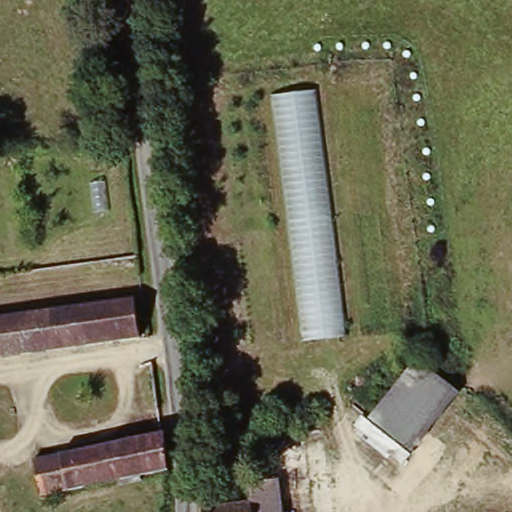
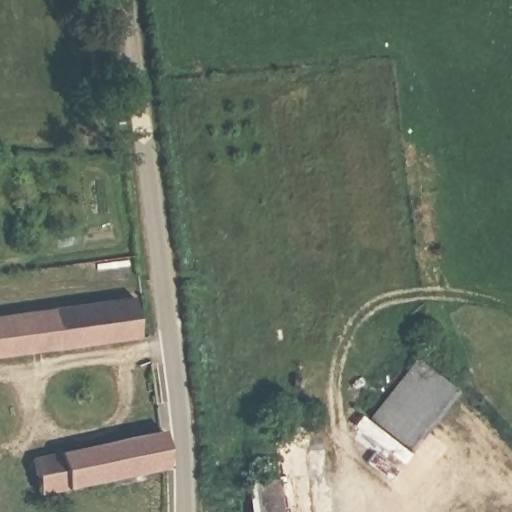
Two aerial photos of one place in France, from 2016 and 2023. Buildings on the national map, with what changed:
demolished [(340,335),(301,339),(270,95),(316,90),(340,335)]
unchanged [(137,299),(141,339),(0,359),(0,317),(137,299)]
unchanged [(415,449),(370,420),(413,360),(457,396),(415,449)]
unchanged [(156,435),(161,435),(165,472),(157,473),(29,498),(24,462),(156,435)]
unchanged [(246,491),(280,486),(283,512),(253,512),(252,510),(247,510),(246,491)]
unchanged [(247,510),(252,510),(253,512),(230,512),(247,510)]

